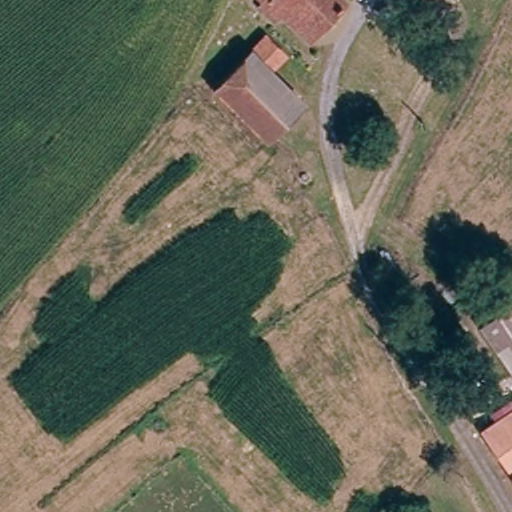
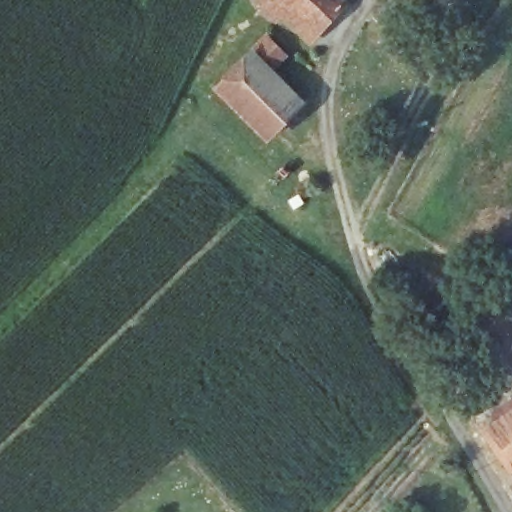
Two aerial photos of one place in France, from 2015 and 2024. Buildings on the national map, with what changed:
unchanged [(279,13),(264,29),(258,23),(253,19),(269,3),(266,0),(345,0),(308,40),(279,13)]
unchanged [(230,92),(246,75),(237,66),(265,36),(282,52),(270,67),(302,97),(272,131),(230,92)]
unchanged [(506,354),(488,326),(512,312),(512,350),(506,354)]
unchanged [(506,354),(512,350),(512,364),(506,354)]
unchanged [(487,444),(477,429),(512,408),(512,428),(487,444)]
unchanged [(505,471),(487,444),(512,428),(512,466),(505,471)]
unchanged [(505,471),(512,466),(512,482),(505,471)]

